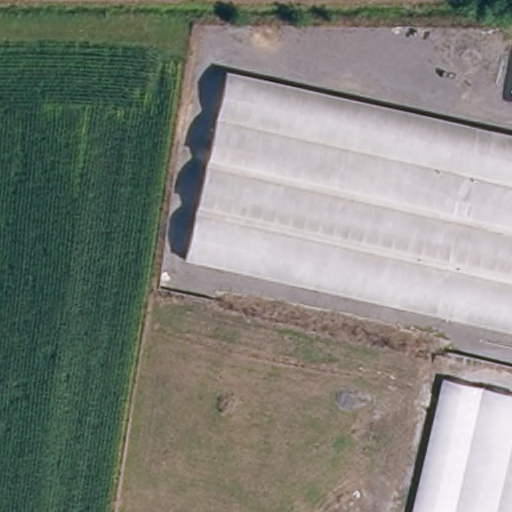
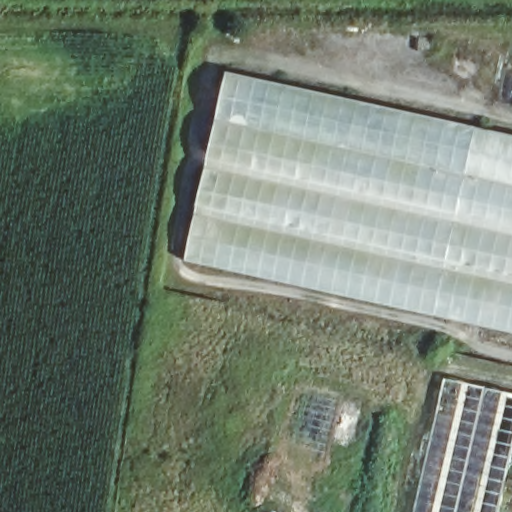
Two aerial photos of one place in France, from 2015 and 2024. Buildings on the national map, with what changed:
unchanged [(227,280),(185,272),(185,271),(199,197),(222,74),(256,80),(417,110),(512,128),(512,336),(227,280)]
unchanged [(437,383),(512,399),(512,512),(410,512),(437,383)]

